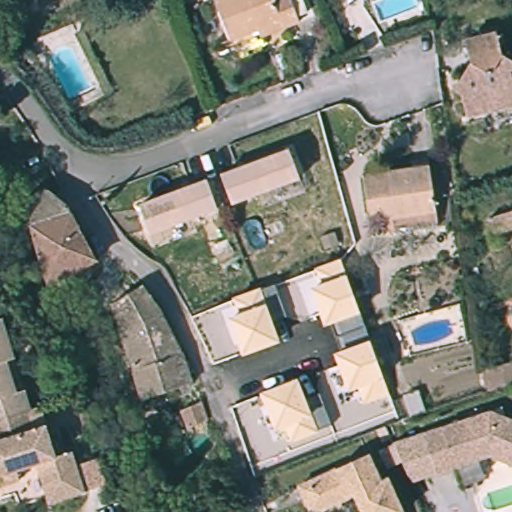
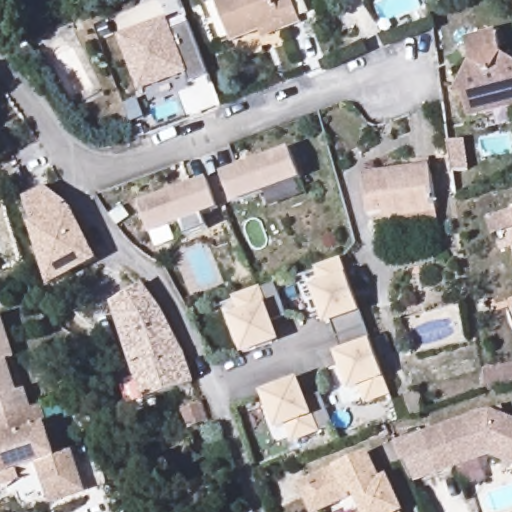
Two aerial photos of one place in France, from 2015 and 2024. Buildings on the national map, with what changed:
unchanged [(235,35),(222,0),(298,0),(302,10),(305,16),(289,22),(267,31),(264,25),(235,35)]
unchanged [(312,7),(302,10),(298,0),(309,0),(312,7)]
new [(167,18),(172,31),(188,25),(208,75),(190,83),(186,75),(138,94),(118,36),(167,18)]
unchanged [(471,64),(466,41),(497,33),(503,55),(512,60),(512,107),(467,118),(462,94),(455,90),(471,64)]
unchanged [(290,150),(301,179),(233,204),(222,175),(290,150)]
unchanged [(399,229),(397,218),(390,220),(388,212),(375,214),(368,175),(418,168),(417,161),(434,159),(442,211),(443,221),(399,229)]
unchanged [(208,181),(219,209),(151,234),(140,206),(208,181)]
unchanged [(53,286),(43,252),(35,222),(28,200),(50,189),(75,206),(101,260),(86,270),(53,286)]
unchanged [(497,235),(492,219),(512,212),(512,230),(497,235)]
unchanged [(325,285),(318,270),(342,261),(366,326),(337,337),(332,321),(327,323),(315,289),(325,285)]
unchanged [(166,306),(178,331),(187,351),(190,351),(200,382),(147,400),(137,370),(117,304),(149,284),(166,306)]
unchanged [(242,315),(237,299),(276,285),(287,316),(272,321),(278,340),(245,352),(232,318),(242,315)]
unchanged [(487,310),(479,310),(478,301),(485,300),(487,310)]
unchanged [(15,363),(7,366),(12,381),(18,398),(27,396),(32,415),(27,416),(0,425),(0,323),(3,322),(15,363)]
unchanged [(366,326),(390,392),(366,401),(360,385),(350,388),(338,355),(343,352),(337,337),(366,326)]
unchanged [(492,390),(488,368),(512,364),(512,386),(492,390)]
unchanged [(298,380),(305,400),(320,393),(332,425),(293,440),(287,424),(277,427),(264,394),(298,380)]
unchanged [(405,396),(418,391),(425,411),(412,415),(405,396)]
unchanged [(190,428),(182,410),(202,402),(208,420),(190,428)]
unchanged [(164,409),(171,407),(174,414),(167,417),(164,409)]
unchanged [(492,412),(512,419),(512,464),(490,457),(437,473),(425,433),(492,412)]
unchanged [(33,436),(47,431),(56,461),(72,457),(84,496),(50,507),(44,487),(54,485),(52,475),(42,478),(38,468),(0,480),(0,425),(27,416),(33,436)]
unchanged [(318,512),(312,512),(300,486),(369,454),(382,481),(388,478),(404,511),(402,512),(364,512),(356,494),(318,512)]

